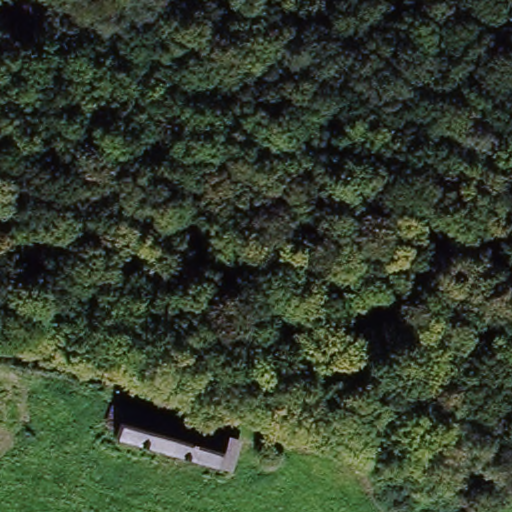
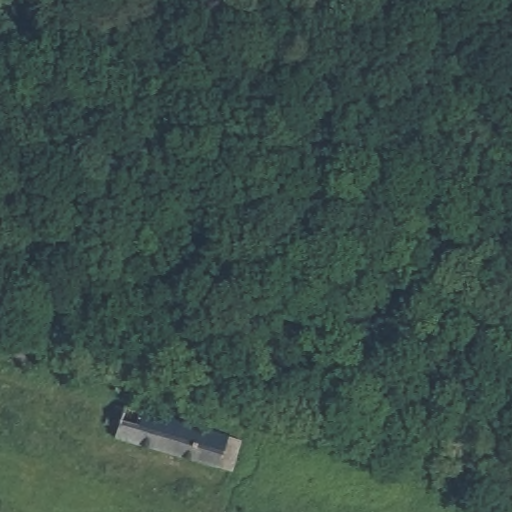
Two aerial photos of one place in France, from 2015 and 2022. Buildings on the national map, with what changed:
unchanged [(233,468),(221,465),(220,470),(117,443),(124,415),(227,442),(225,450),(237,453),(233,468)]

